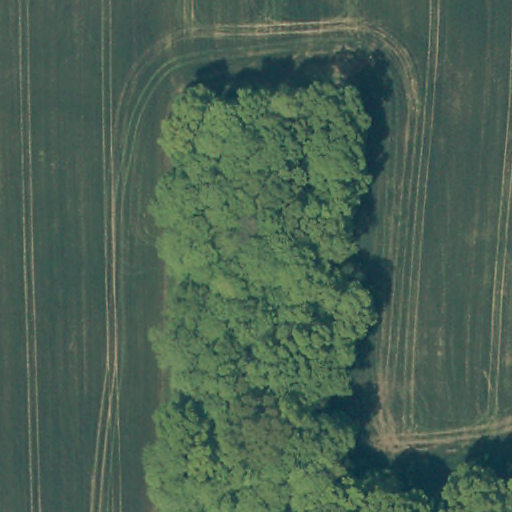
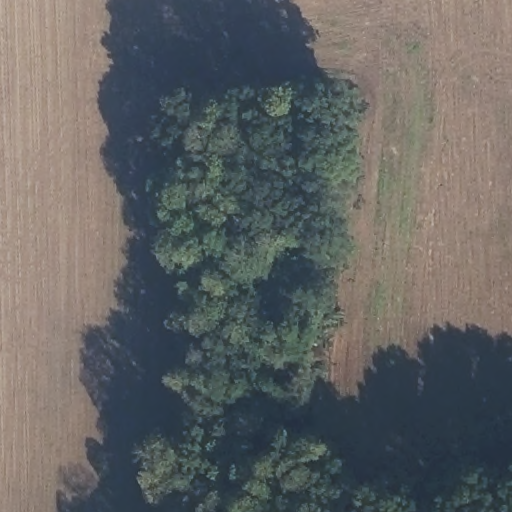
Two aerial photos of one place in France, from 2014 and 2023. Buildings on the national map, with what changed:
[]

